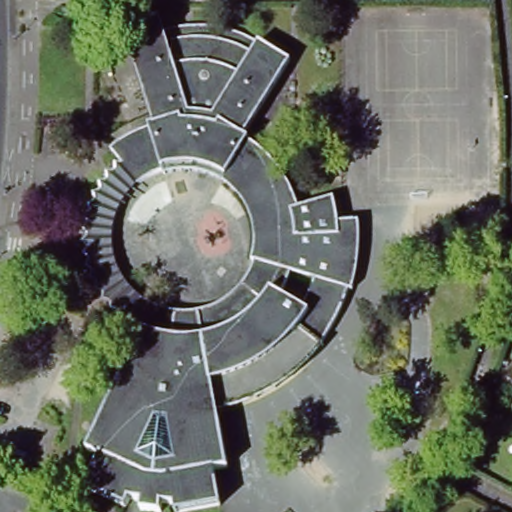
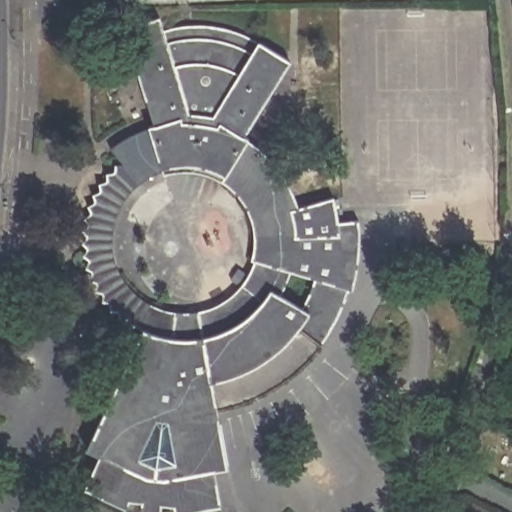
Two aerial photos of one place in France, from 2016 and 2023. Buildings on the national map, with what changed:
unchanged [(111,150),(125,141),(135,135),(150,129),(150,128),(158,124),(125,29),(161,16),(167,31),(181,31),(198,31),(215,33),(225,35),(238,38),(252,44),(253,42),(287,61),(246,136),(250,139),(250,140),(261,149),(274,161),(283,173),(290,184),(295,194),(300,207),(335,197),(338,210),(340,222),(360,221),(360,234),(360,250),(358,264),(357,272),(355,284),(351,284),(347,299),(342,311),(335,324),(325,339),(329,343),(321,352),(310,366),(295,377),(283,386),(272,392),(258,399),(244,405),(234,408),(218,411),(227,468),(215,470),(220,506),(179,512),(175,512),(175,506),(161,504),(160,512),(152,512),(141,510),(142,502),(130,499),(126,507),(104,497),(85,487),(100,456),(88,450),(116,389),(142,333),(144,329),(155,334),(163,336),(171,337),(176,312),(185,312),(197,311),(206,309),(213,307),(222,303),(228,299),(234,294),(239,290),(245,284),(248,278),(251,272),(253,267),(256,259),(251,259),(253,250),(254,239),(253,228),(250,217),(246,208),(243,202),(238,197),(234,192),(228,187),(222,182),(215,179),(208,176),(200,174),(195,173),(188,173),(178,173),(172,174),(165,176),(163,172),(156,175),(148,179),(140,185),(122,164),(111,150)]
unchanged [(131,194),(127,200),(125,204),(120,214),(116,225),(115,232),(115,239),(115,248),(117,259),(120,268),(124,275),(128,282),(132,288),(137,293),(145,299),(155,305),(160,307),(165,309),(176,312),(171,337),(163,336),(155,334),(144,329),(142,333),(133,329),(125,322),(118,317),(114,313),(108,306),(102,298),(97,290),(95,284),(92,277),(88,266),(85,255),(85,248),(85,239),(85,232),(86,224),(88,218),(91,206),(96,194),(101,186),(107,179),(111,174),(120,165),(122,164),(140,185),(131,194)]

